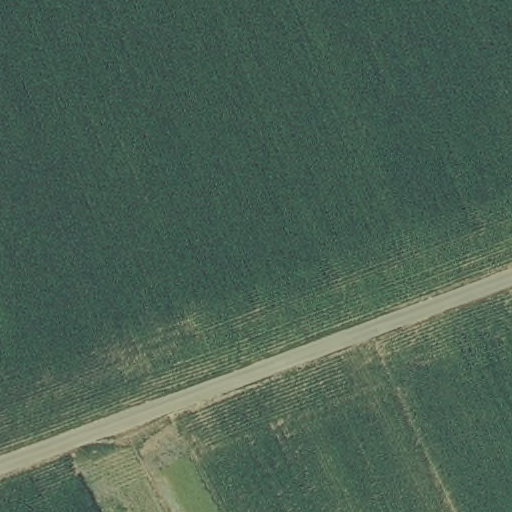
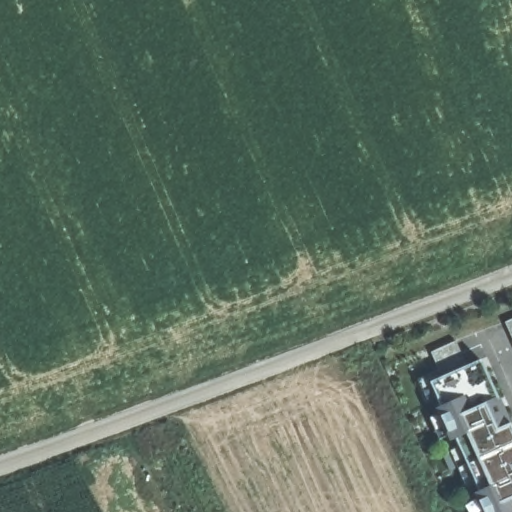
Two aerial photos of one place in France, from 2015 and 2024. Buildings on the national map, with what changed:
new [(505,322),(512,319),(512,337),(505,322)]
new [(480,359),(512,431),(512,512),(486,512),(430,382),(441,377),(430,351),(455,341),(466,364),(480,359)]

